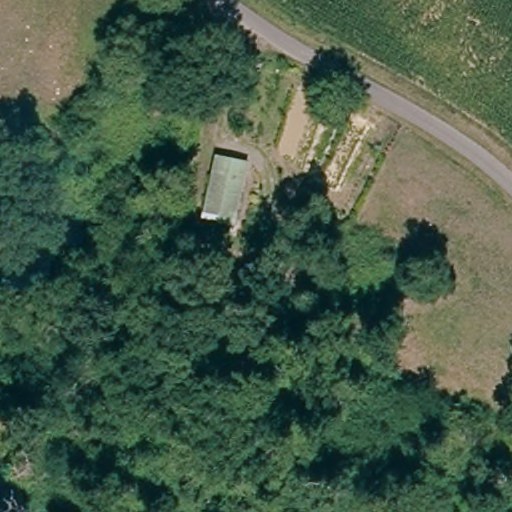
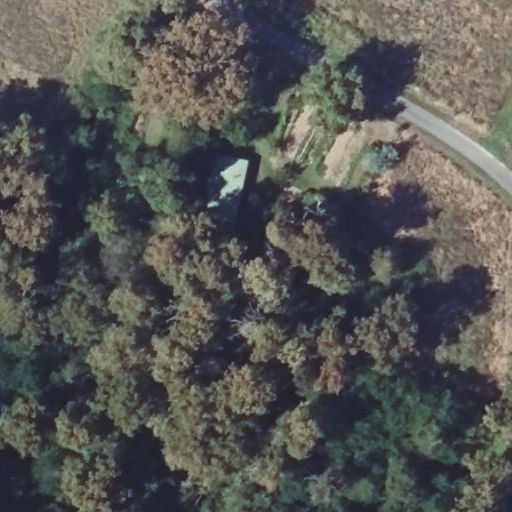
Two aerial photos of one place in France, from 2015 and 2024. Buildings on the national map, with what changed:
unchanged [(254,161),(243,221),(215,219),(226,157),(254,161)]

